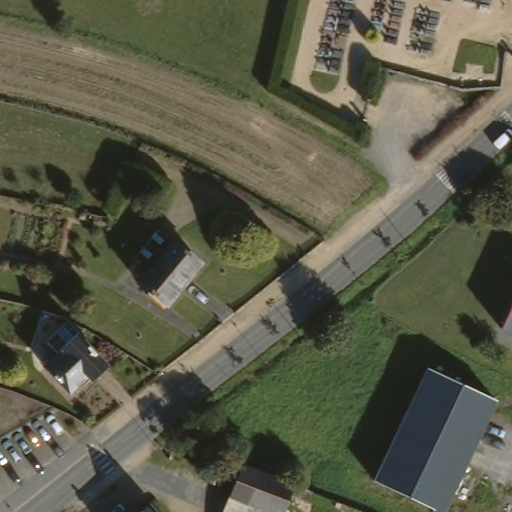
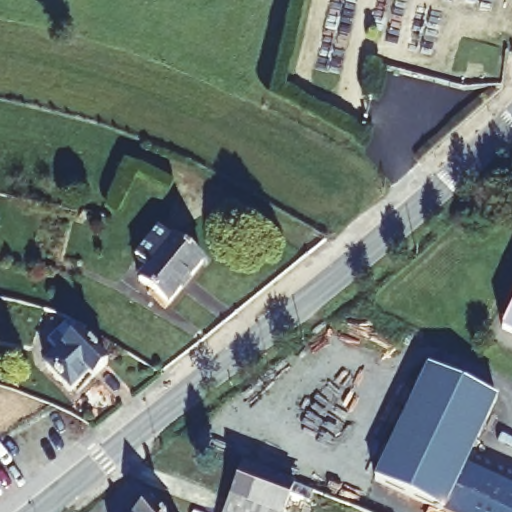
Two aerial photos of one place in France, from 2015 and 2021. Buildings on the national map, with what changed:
unchanged [(138,277),(174,235),(202,259),(166,301),(138,277)]
unchanged [(512,309),(512,328),(505,325),(512,309)]
unchanged [(82,338),(107,367),(79,391),(77,389),(72,392),(49,366),(53,363),(76,343),(59,335),(64,322),(77,326),(89,332),(82,338)]
unchanged [(445,512),(436,512),(374,481),(427,372),(497,405),(445,512)]
unchanged [(291,491),(282,512),(277,512),(232,495),(244,462),(254,465),(317,486),(312,499),(291,491)]
new [(512,488),(512,512),(445,512),(467,467),(512,488)]
unchanged [(277,512),(225,512),(232,495),(277,512)]
unchanged [(154,512),(134,512),(145,502),(154,512)]

